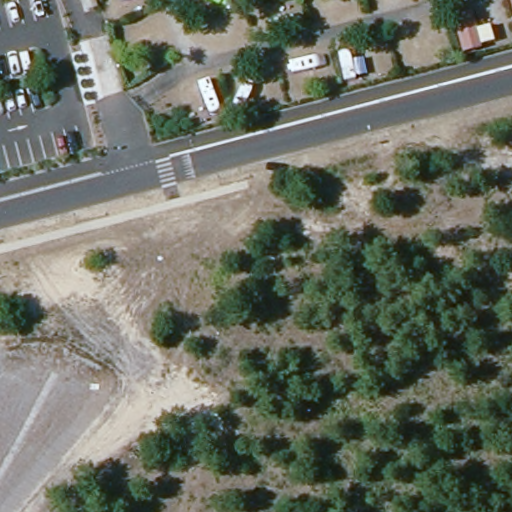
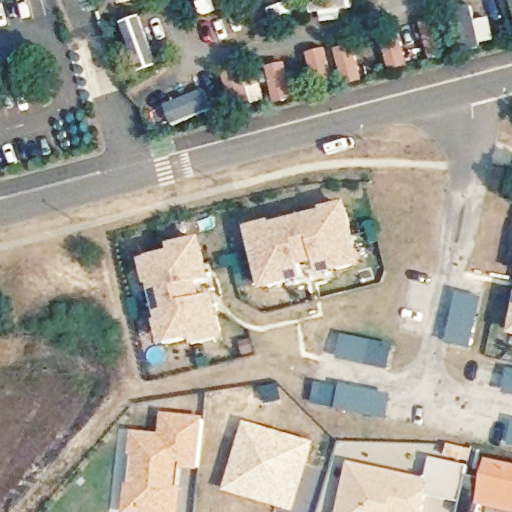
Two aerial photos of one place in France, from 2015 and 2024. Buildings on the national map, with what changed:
new [(330,208),(329,205),(351,200),(365,256),(343,261),(343,260),(325,264),(318,238),(311,240),(304,214),(330,208)]
new [(278,218),(279,221),(304,214),(311,240),(303,242),(310,268),(291,273),(292,274),(270,280),(256,224),(278,218)]
new [(177,249),(175,241),(204,234),(210,256),(208,256),(213,274),(186,281),(188,289),(163,295),(158,277),(156,278),(150,255),(177,249)]
new [(188,289),(190,296),(216,289),(221,308),(222,307),(228,329),(199,336),(197,329),(170,336),(165,314),(168,313),(163,295),(188,289)]
new [(450,346),(460,296),(485,302),(474,351),(450,346)]
new [(391,372),(339,362),(345,338),(396,349),(391,372)]
new [(510,372),(512,372),(512,397),(505,396),(510,372)]
new [(390,422),(338,411),(343,388),(395,398),(390,422)]
new [(161,436),(163,415),(205,419),(199,473),(182,471),(180,490),(184,490),(183,512),(125,512),(127,487),(131,487),(134,458),(131,457),(132,433),(161,436)]
new [(316,445),(296,512),(289,512),(225,494),(245,424),(316,445)]
new [(512,445),(512,448),(511,448),(512,445)]
new [(431,461),(469,469),(467,478),(484,481),(488,462),(512,467),(512,512),(498,512),(482,509),(482,512),(460,512),(462,505),(430,498),(427,512),(339,512),(350,464),(427,482),(431,461)]

